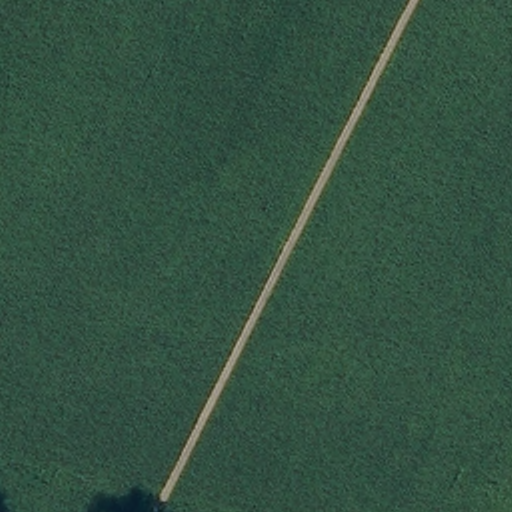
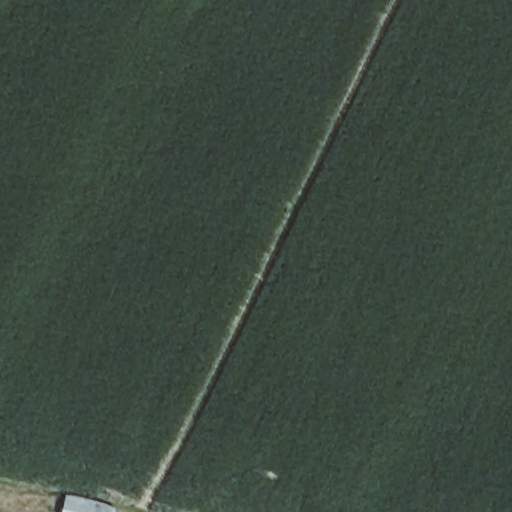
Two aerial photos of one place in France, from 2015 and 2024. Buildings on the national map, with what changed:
new [(63,493),(113,507),(112,512),(58,512),(63,493)]

